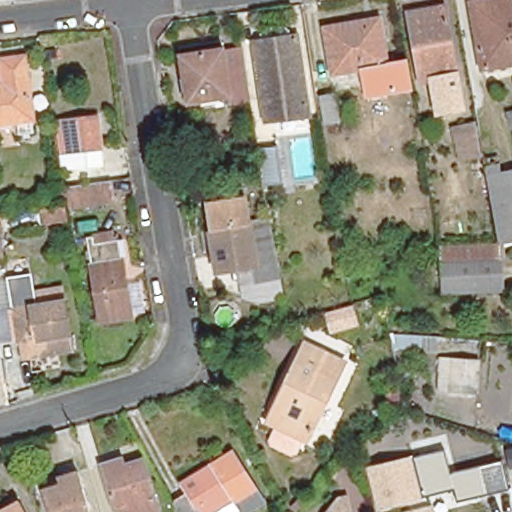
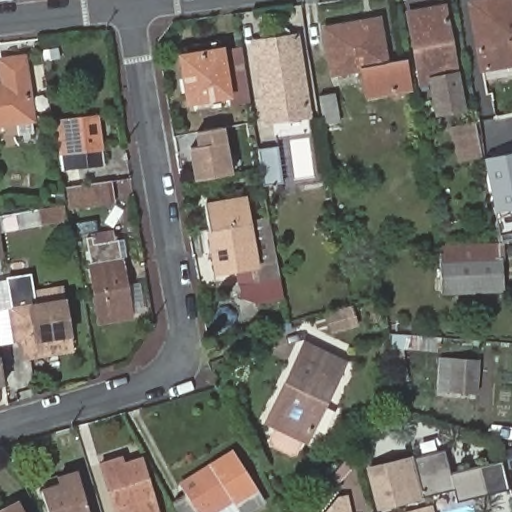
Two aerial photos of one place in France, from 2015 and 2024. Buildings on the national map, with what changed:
unchanged [(467,0),(512,0),(512,69),(477,74),(467,0)]
unchanged [(452,71),(453,76),(430,80),(417,82),(406,22),(405,13),(425,10),(441,8),(452,71)]
unchanged [(378,22),(384,61),(385,66),(360,70),(330,75),(324,29),(378,22)]
unchanged [(297,26),(310,116),(260,124),(246,33),(297,26)]
unchanged [(176,47),(219,41),(223,66),(245,62),(251,102),(228,106),(227,97),(185,103),(176,47)]
unchanged [(2,72),(0,62),(0,58),(22,55),(31,113),(0,118),(0,72),(2,72)]
unchanged [(385,66),(384,61),(406,57),(412,92),(365,99),(360,70),(385,66)]
unchanged [(453,76),(452,71),(458,69),(466,111),(436,116),(430,80),(453,76)]
unchanged [(316,94),(330,92),(334,123),(320,125),(316,94)]
unchanged [(512,111),(512,135),(508,112),(512,111)]
unchanged [(61,170),(58,154),(59,154),(55,121),(96,117),(100,149),(76,152),(78,167),(61,170)]
unchanged [(483,168),(471,170),(469,162),(461,163),(454,126),(475,121),(483,168)]
new [(232,173),(197,179),(191,146),(198,145),(195,132),(224,126),(232,173)]
unchanged [(262,167),(259,152),(281,148),(286,184),(265,187),(262,167)]
unchanged [(502,262),(503,295),(439,298),(438,248),(497,244),(488,173),(512,169),(512,245),(509,246),(502,262)]
unchanged [(64,189),(109,181),(113,202),(68,210),(67,202),(64,189)]
unchanged [(277,263),(280,283),(254,288),(251,272),(235,275),(216,278),(204,211),(244,204),(247,226),(270,222),(277,263)]
unchanged [(6,260),(0,260),(0,217),(6,260)]
unchanged [(87,243),(117,238),(130,315),(100,320),(87,243)]
unchanged [(257,310),(241,305),(235,275),(251,272),(254,288),(280,283),(282,297),(284,306),(257,310)]
unchanged [(8,302),(26,300),(58,295),(68,352),(28,358),(26,347),(22,347),(15,348),(14,341),(8,302)]
unchanged [(283,390),(302,352),(340,372),(303,448),(270,431),(263,427),(283,390)]
unchanged [(5,387),(0,388),(0,355),(5,387)]
unchanged [(483,363),(478,397),(434,390),(438,357),(483,363)]
unchanged [(367,468),(409,456),(409,453),(444,443),(449,461),(414,471),(420,497),(377,508),(367,468)]
unchanged [(186,496),(178,485),(231,450),(265,507),(258,512),(175,512),(171,505),(186,496)]
unchanged [(503,461),(511,491),(459,503),(452,473),(503,461)]
unchanged [(98,471),(118,465),(121,472),(140,466),(155,512),(111,512),(98,471)]
unchanged [(41,492),(59,486),(57,478),(77,472),(88,512),(47,512),(41,492)]
unchanged [(348,512),(326,512),(338,497),(345,495),(348,512)]
unchanged [(512,500),(512,512),(457,512),(512,500)]
unchanged [(20,505),(23,512),(6,512),(20,505)]
unchanged [(433,509),(434,512),(421,512),(433,509)]

